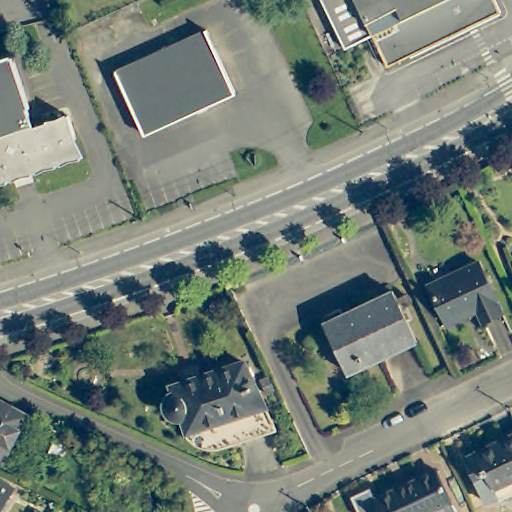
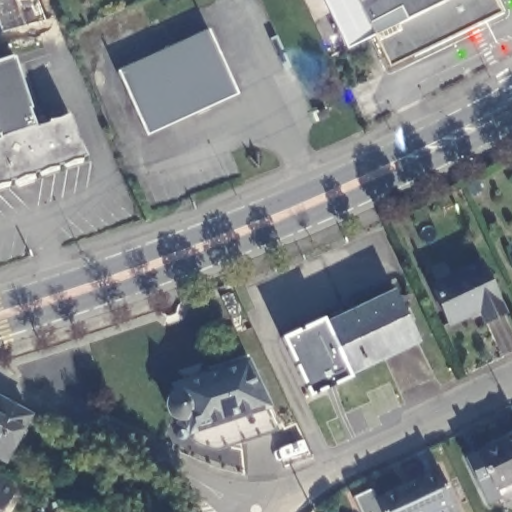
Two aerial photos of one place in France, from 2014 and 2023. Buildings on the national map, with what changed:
unchanged [(392,66),(377,35),(351,48),(328,0),(499,0),(504,11),(392,66)]
unchanged [(239,89),(146,133),(118,71),(208,28),(239,89)]
unchanged [(67,111),(73,135),(82,151),(0,180),(0,54),(10,50),(35,123),(67,111)]
unchanged [(505,312),(485,321),(480,310),(450,324),(432,285),(481,262),(505,312)]
unchanged [(352,373),(328,325),(338,319),(395,291),(419,339),(361,368),(352,373)]
new [(352,373),(353,377),(308,397),(280,335),(323,315),(328,325),(352,373)]
unchanged [(278,429),(239,442),(215,440),(191,433),(185,418),(179,418),(175,417),(171,414),(168,410),(167,403),(169,399),(172,395),(177,393),(175,385),(247,360),(278,429)]
unchanged [(5,461),(0,458),(0,397),(31,413),(5,461)]
unchanged [(502,497),(497,487),(495,489),(491,480),(480,485),(466,456),(512,434),(512,493),(502,497)]
unchanged [(386,509),(381,512),(376,512),(372,504),(365,508),(354,487),(372,478),(377,488),(438,459),(462,511),(461,512),(388,512),(386,509)]
unchanged [(0,481),(15,490),(10,497),(1,512),(0,512),(0,478),(2,479),(0,481)]

